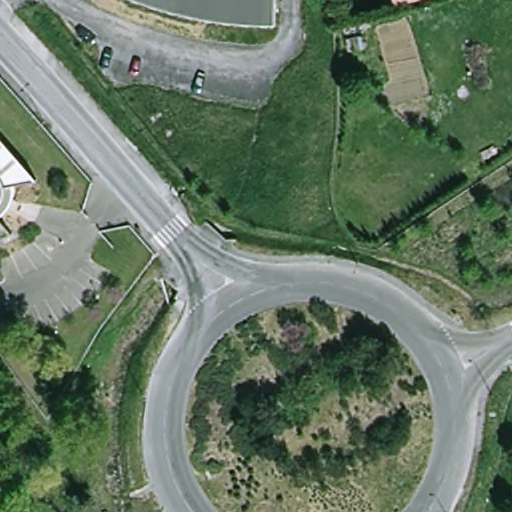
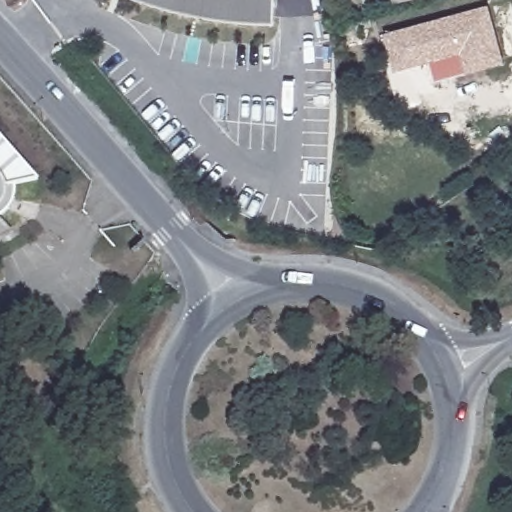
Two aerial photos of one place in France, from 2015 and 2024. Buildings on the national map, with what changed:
unchanged [(277,32),(242,30),(211,25),(180,17),(152,9),(132,2),(129,0),(278,0),(277,32)]
new [(411,5),(410,2),(393,7),(391,0),(425,0),(411,5)]
new [(505,65),(467,76),(460,55),(394,74),(382,36),(488,7),(505,65)]
unchanged [(342,25),(359,19),(365,47),(348,51),(342,25)]
unchanged [(13,192),(13,194),(12,198),(10,201),(10,202),(7,206),(5,208),(5,210),(2,212),(3,234),(0,235),(0,143),(36,185),(13,192)]

